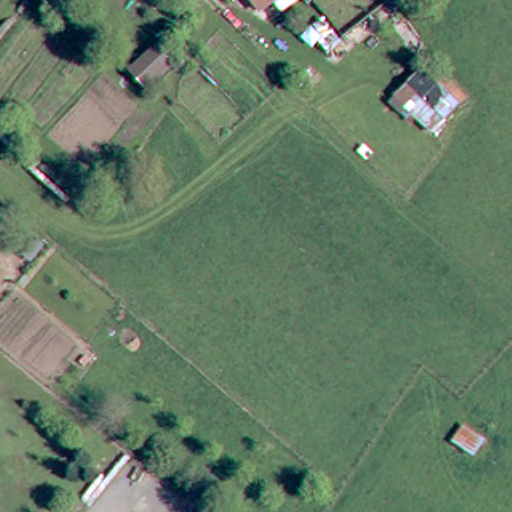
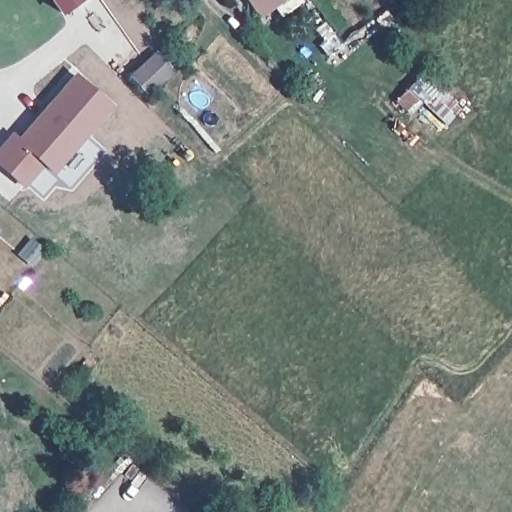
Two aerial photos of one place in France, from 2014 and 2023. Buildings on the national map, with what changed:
unchanged [(87,3),(75,12),(66,0),(100,0),(110,16),(100,22),(87,3)]
unchanged [(245,11),(235,0),(259,0),(245,11)]
new [(159,54),(175,71),(170,75),(151,93),(136,76),(155,58),(159,54)]
new [(21,137),(36,121),(44,128),(58,112),(50,106),(79,74),(113,104),(55,169),(45,160),(25,183),(0,160),(0,149),(15,132),(21,137)]
unchanged [(440,77),(469,106),(440,139),(411,111),(440,77)]

